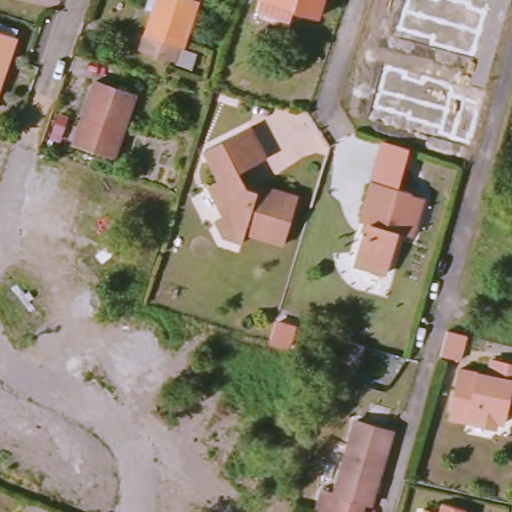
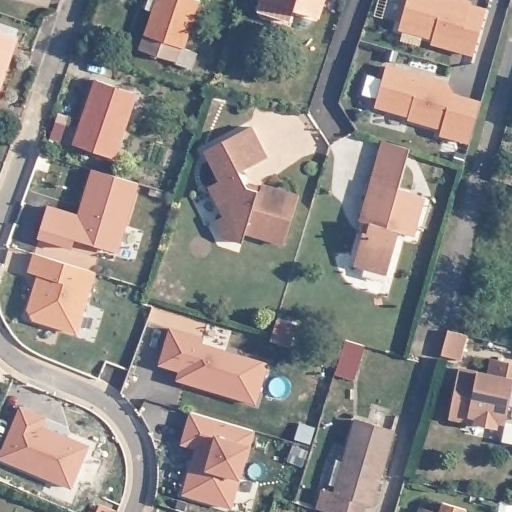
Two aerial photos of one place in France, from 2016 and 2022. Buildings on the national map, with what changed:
unchanged [(182,65),(142,51),(160,0),(200,0),(204,1),(182,65)]
unchanged [(280,0),(323,0),(320,13),(280,0)]
new [(395,33),(403,0),(486,0),(491,1),(477,54),(395,33)]
unchanged [(22,34),(0,99),(0,26),(22,34)]
new [(455,88),(482,96),(471,141),(439,135),(440,126),(407,118),(403,111),(374,105),(385,61),(447,76),(455,88)]
unchanged [(139,96),(118,159),(79,146),(102,83),(139,96)]
unchanged [(252,129),(266,157),(241,171),(247,188),(261,192),(263,184),(300,195),(285,243),(256,235),(251,255),(235,250),(225,231),(234,225),(215,186),(222,182),(208,150),(252,129)]
unchanged [(362,264),(357,256),(363,235),(361,233),(364,222),(360,220),(383,140),(410,148),(399,188),(374,268),(362,264)]
new [(78,216),(91,171),(139,186),(118,253),(73,238),(71,248),(37,238),(48,206),(78,216)]
unchanged [(415,192),(414,196),(426,200),(414,238),(402,235),(390,272),(374,268),(399,188),(415,192)]
new [(97,272),(77,335),(30,320),(26,312),(37,276),(30,274),(33,253),(97,272)]
new [(204,339),(203,344),(268,361),(255,404),(175,381),(178,371),(160,365),(168,328),(204,339)]
unchanged [(453,330),(467,333),(459,358),(446,354),(453,330)]
unchanged [(360,387),(337,381),(341,367),(348,345),(372,352),(360,387)]
unchanged [(511,367),(512,367),(512,397),(503,431),(460,421),(448,418),(464,367),(474,370),(489,374),(492,362),(511,367)]
new [(49,419),(45,428),(92,447),(73,490),(0,461),(0,453),(19,407),(49,419)]
new [(255,432),(251,446),(240,481),(231,510),(182,496),(193,450),(181,444),(191,412),(255,432)]
unchanged [(326,496),(337,498),(352,424),(388,432),(373,505),(366,503),(364,512),(321,512),(326,496)]
unchanged [(442,501),(470,511),(469,512),(439,512),(442,501)]
unchanged [(427,510),(436,512),(426,512),(427,510)]

